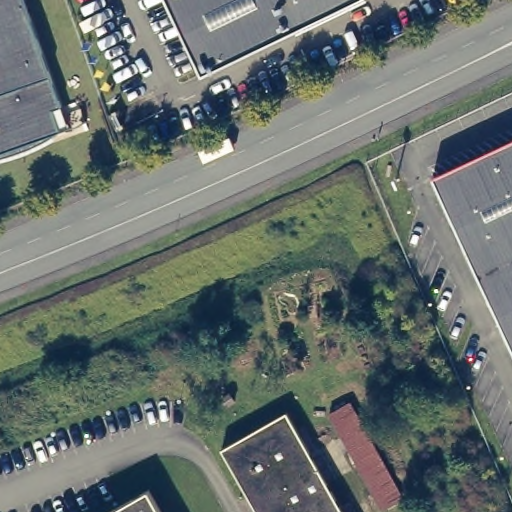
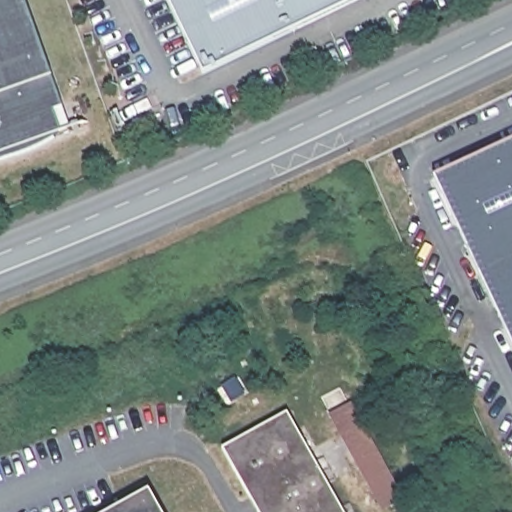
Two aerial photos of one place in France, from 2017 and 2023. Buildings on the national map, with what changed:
unchanged [(43,110),(53,135),(44,137),(44,136),(32,143),(21,148),(9,152),(0,156),(0,0),(14,0),(52,107),(43,110)]
unchanged [(161,0),(353,0),(198,75),(161,0)]
unchanged [(433,176),(512,140),(512,346),(433,176)]
unchanged [(348,405),(401,500),(384,508),(331,413),(348,405)]
unchanged [(221,445),(286,407),(345,512),(260,512),(221,445)]
unchanged [(160,512),(111,512),(148,491),(160,512)]

